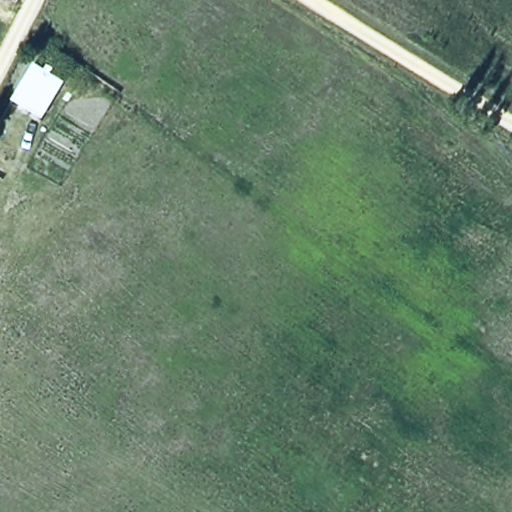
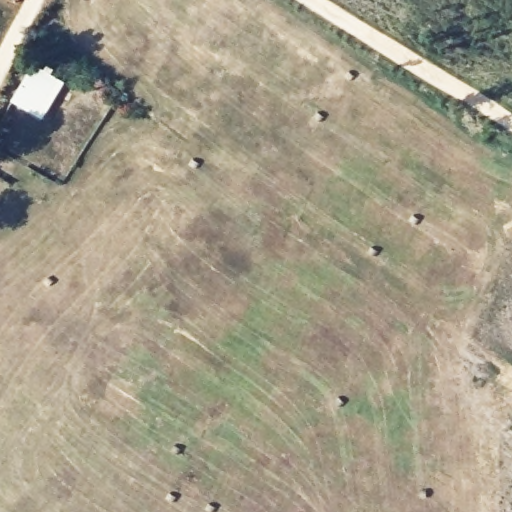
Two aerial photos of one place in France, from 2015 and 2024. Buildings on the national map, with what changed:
unchanged [(37,60),(65,78),(42,115),(13,98),(37,60)]

